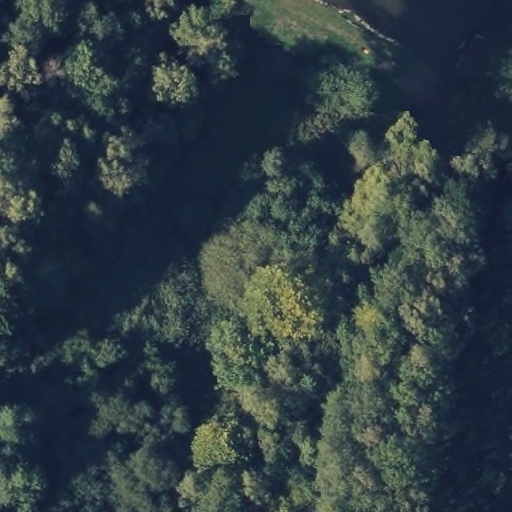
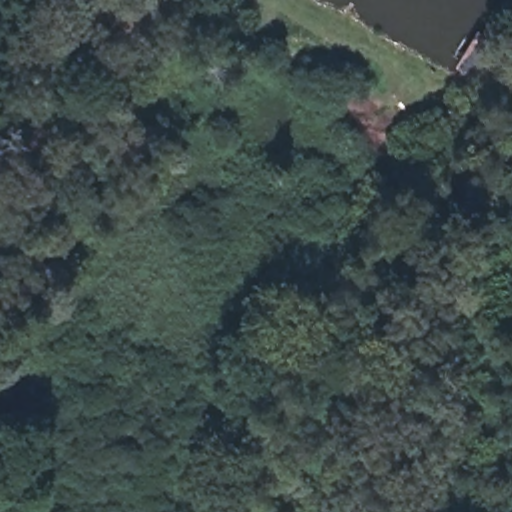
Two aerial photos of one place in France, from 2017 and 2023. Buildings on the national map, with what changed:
unchanged [(475,27),(494,35),(470,70),(451,62),(475,27)]

